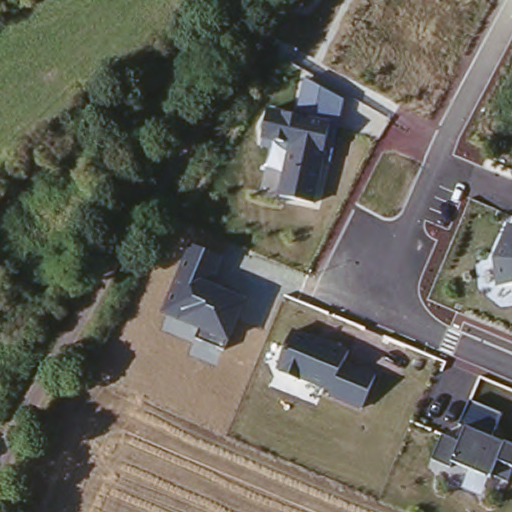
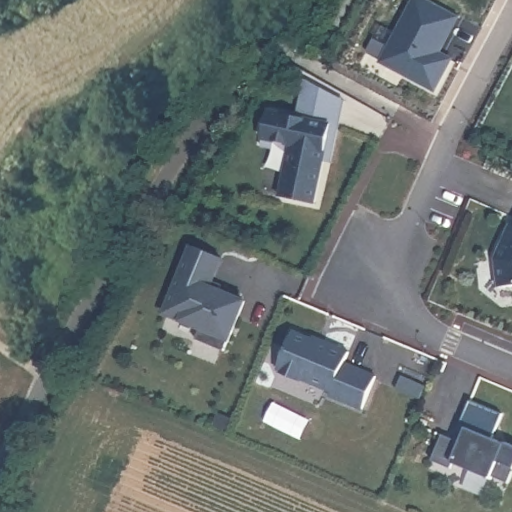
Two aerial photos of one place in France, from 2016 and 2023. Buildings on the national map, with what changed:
new [(432,0),(461,17),(440,57),(452,64),(435,95),(380,64),(414,0),(432,0)]
unchanged [(344,101),(332,165),(323,164),(316,203),(279,194),(288,144),(264,137),(270,109),(297,115),(304,80),(344,101)]
unchanged [(494,259),(508,222),(512,225),(512,287),(499,288),(494,259)]
unchanged [(225,258),(216,285),(247,298),(232,342),(226,340),(223,349),(197,338),(201,330),(163,313),(192,246),(225,258)]
unchanged [(295,332),(325,345),(326,342),(350,351),(346,363),(376,375),(365,408),(331,396),(333,391),(282,367),(295,332)]
unchanged [(445,434),(462,442),(468,427),(461,424),(470,402),(501,414),(491,438),(512,447),(512,469),(507,481),(494,473),(491,476),(457,463),(454,468),(434,458),(445,434)]

